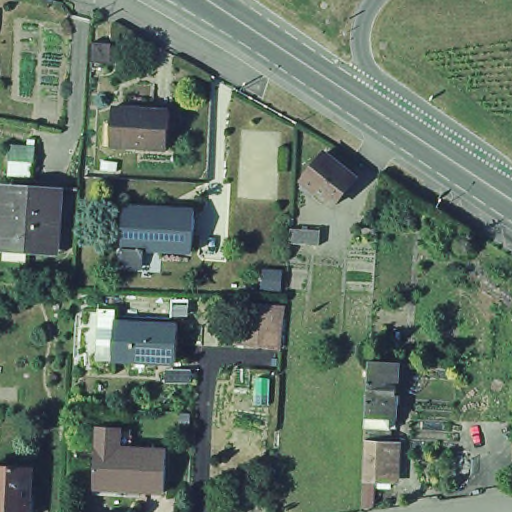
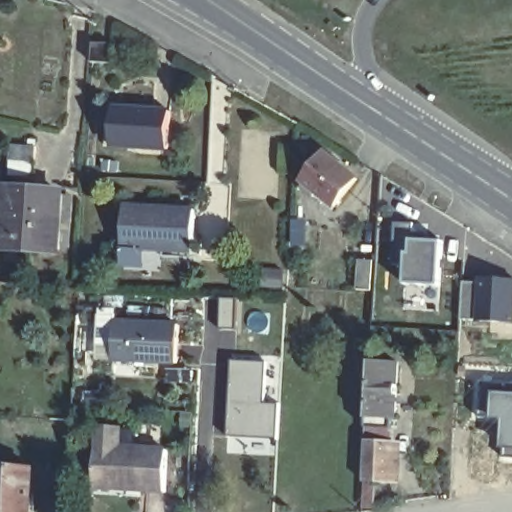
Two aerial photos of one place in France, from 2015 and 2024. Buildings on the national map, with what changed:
unchanged [(93,45),(113,46),(112,66),(91,65),(92,45),(93,45)]
unchanged [(174,114),(172,151),(115,147),(117,109),(174,114)]
unchanged [(355,178),(333,204),(316,191),(313,196),(307,191),(311,187),(303,181),(325,154),(355,178)]
unchanged [(64,190),(59,249),(4,244),(8,186),(64,190)]
unchanged [(125,269),(127,249),(129,209),(199,212),(197,254),(165,251),(163,270),(125,269)]
new [(430,225),(430,244),(451,245),(450,289),(415,288),(415,270),(400,268),(400,224),(430,225)]
unchanged [(320,228),(319,243),(292,242),(292,226),(320,228)]
new [(260,267),(285,270),(283,290),(257,288),(260,267)]
new [(464,283),(481,283),(482,280),(512,282),(512,323),(463,321),(464,283)]
unchanged [(272,356),(229,346),(240,298),(283,308),(272,356)]
unchanged [(142,367),(118,366),(119,352),(102,351),(104,320),(104,315),(114,315),(114,320),(122,321),(122,329),(183,331),(182,370),(152,368),(151,372),(142,372),(142,367)]
new [(233,361),(265,362),(264,403),(278,404),(276,440),(227,435),(233,361)]
unchanged [(398,364),(395,419),(392,419),(390,443),(393,443),(391,483),(365,481),(371,363),(398,364)]
new [(502,418),(484,419),(484,383),(512,384),(512,423),(502,423),(502,418)]
unchanged [(166,487),(97,485),(98,443),(98,440),(99,423),(131,425),(131,445),(169,446),(166,487)]
unchanged [(37,463),(34,512),(0,512),(0,461),(37,463)]

